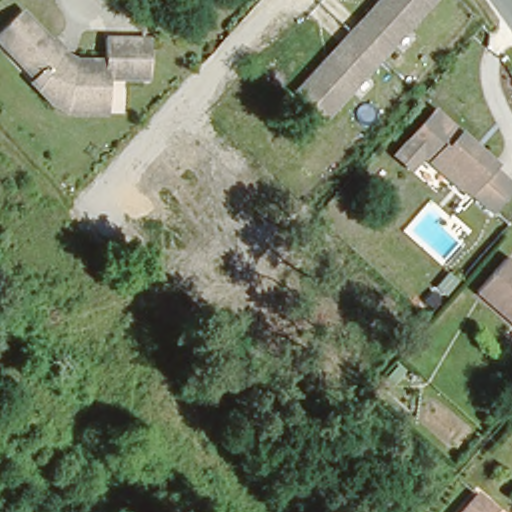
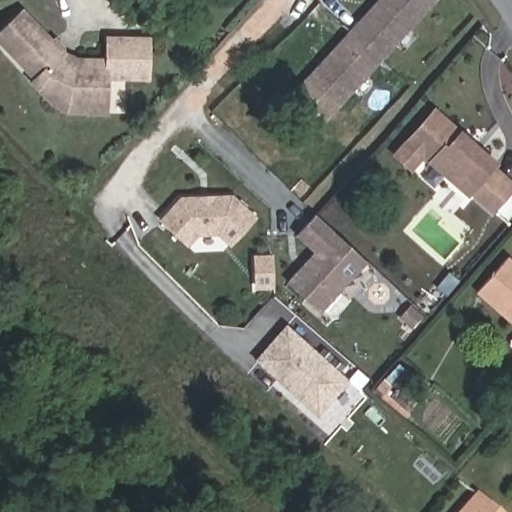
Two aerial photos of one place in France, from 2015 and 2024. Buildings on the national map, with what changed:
unchanged [(372,7),(378,0),(425,0),(427,2),(375,63),(348,40),(375,9),(372,7)]
unchanged [(103,118),(98,118),(68,117),(68,102),(55,102),(47,98),(45,97),(0,50),(0,31),(18,14),(59,56),(74,64),(79,64),(103,65),(103,42),(145,43),(145,63),(145,84),(127,84),(104,83),(103,103),(103,112),(103,118)]
unchanged [(321,70),(348,40),(375,63),(323,123),(294,98),(319,68),(321,70)]
unchanged [(432,113),(493,167),(490,170),(511,190),(491,214),(469,194),(466,197),(421,157),(409,171),(393,157),(432,113)]
new [(217,236),(197,236),(185,248),(157,220),(179,196),(231,194),(255,217),(228,246),(217,236)]
new [(319,314),(285,282),(312,252),(295,236),(314,214),(366,263),(319,314)]
new [(275,255),(277,289),(258,286),(256,256),(275,255)]
unchanged [(512,320),(476,288),(502,257),(512,266),(512,320)]
new [(316,418),(254,361),(285,324),(348,381),(316,418)]
unchanged [(475,485),(503,509),(507,512),(451,512),(475,485)]

